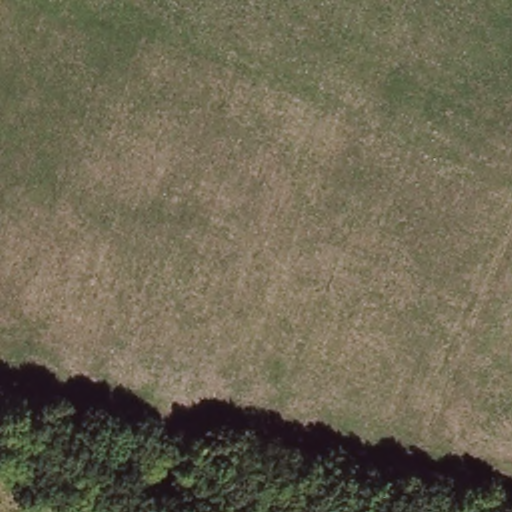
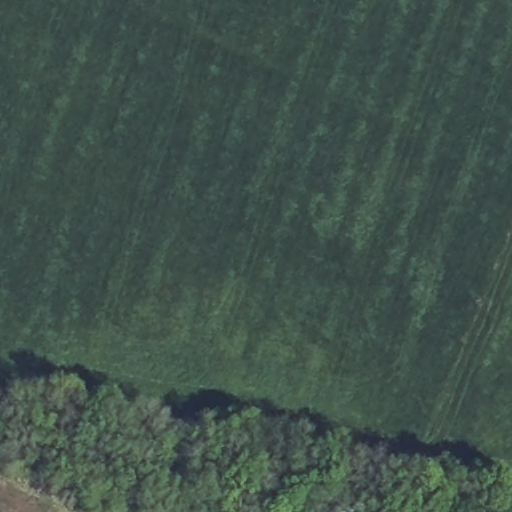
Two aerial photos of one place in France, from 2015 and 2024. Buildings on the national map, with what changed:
unchanged [(130,433),(103,428),(107,399),(135,404),(131,432),(131,434),(130,433)]

